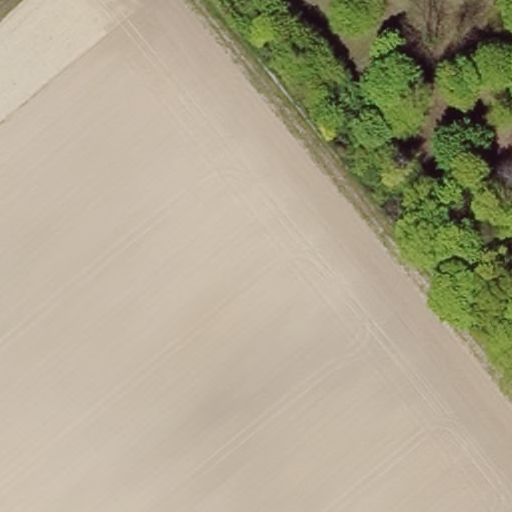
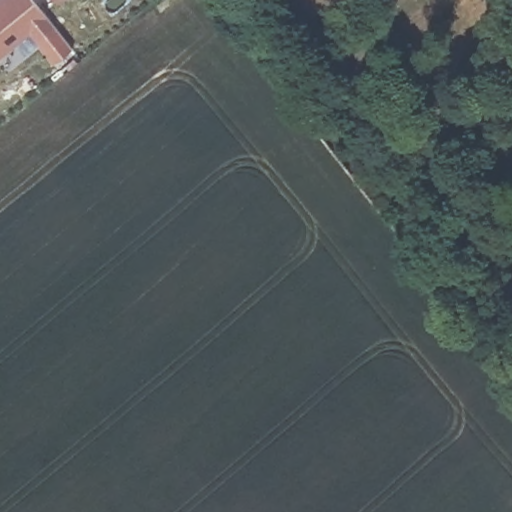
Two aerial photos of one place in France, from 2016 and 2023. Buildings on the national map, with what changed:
new [(53,63),(29,32),(0,56),(0,0),(33,0),(71,49),(53,63)]
new [(57,2),(55,0),(60,0),(57,2)]

